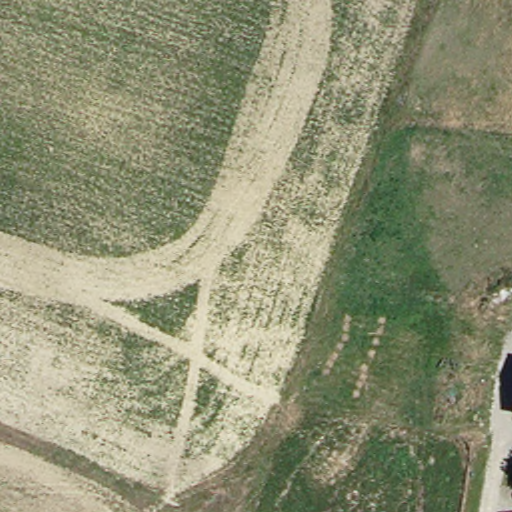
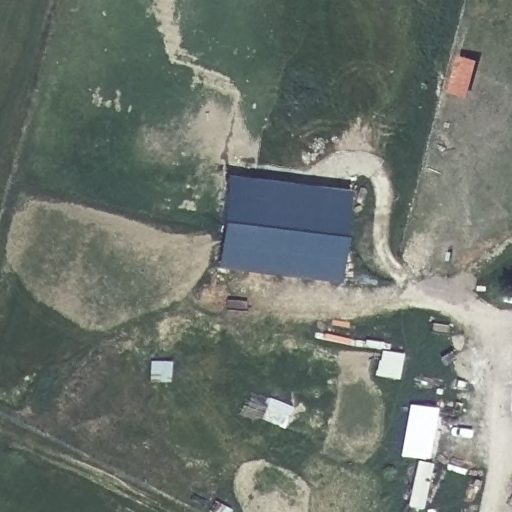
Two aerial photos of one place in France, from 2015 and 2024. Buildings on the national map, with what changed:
new [(342,197),(332,285),(213,272),(223,183),(342,197)]
new [(431,466),(422,512),(407,509),(416,464),(401,461),(411,409),(434,414),(424,465),(431,466)]

